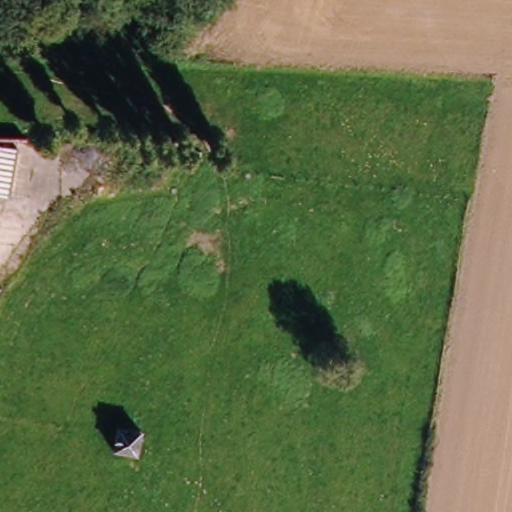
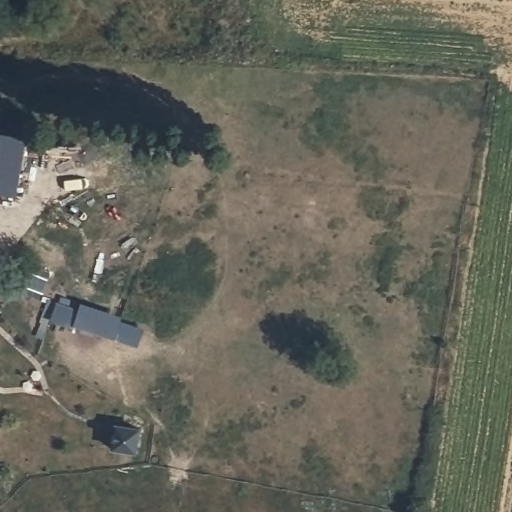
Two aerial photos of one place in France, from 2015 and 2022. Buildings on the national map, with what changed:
unchanged [(17,141),(8,192),(0,191),(0,138),(17,141)]
new [(78,307),(81,301),(125,316),(123,321),(143,327),(137,345),(49,320),(56,300),(78,307)]
unchanged [(145,433),(139,456),(116,452),(121,428),(145,433)]

